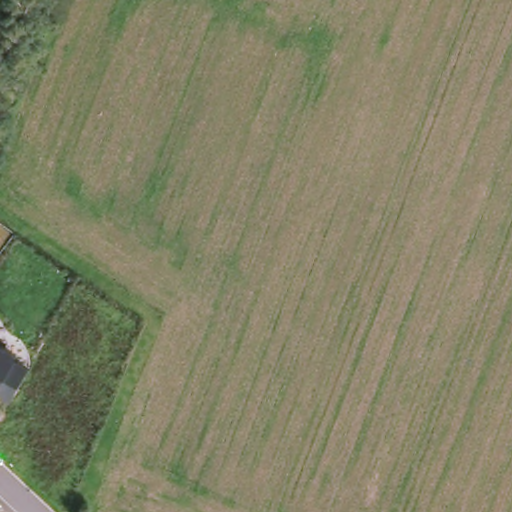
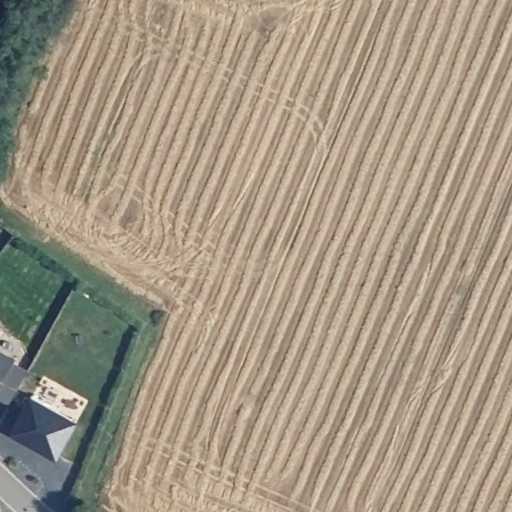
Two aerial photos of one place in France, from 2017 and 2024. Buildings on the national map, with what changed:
unchanged [(15,358),(28,366),(10,403),(0,396),(0,349),(16,357),(15,358)]
new [(58,458),(10,431),(32,392),(78,417),(76,421),(58,458)]

